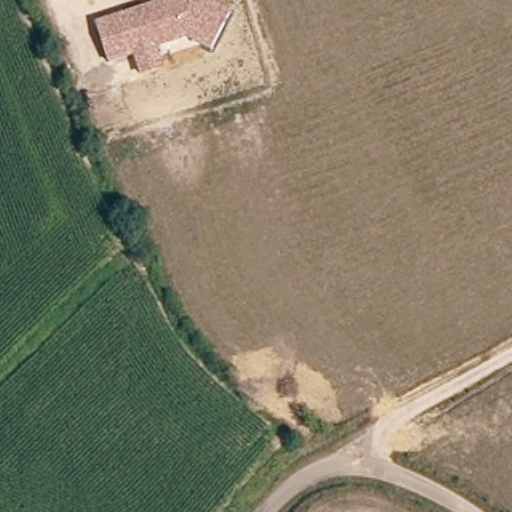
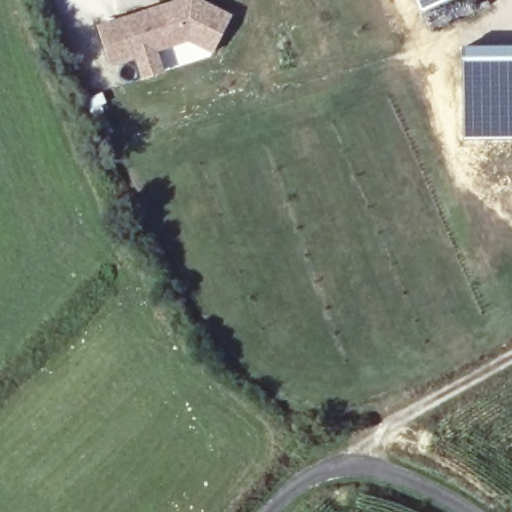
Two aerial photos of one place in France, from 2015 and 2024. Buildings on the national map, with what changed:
unchanged [(111,66),(96,27),(177,0),(203,0),(232,15),(210,54),(188,41),(158,51),(165,75),(142,81),(134,60),(111,66)]
new [(423,0),(428,0),(424,2),(423,0)]
new [(491,44),(512,43),(512,139),(464,140),(462,45),(491,44)]

